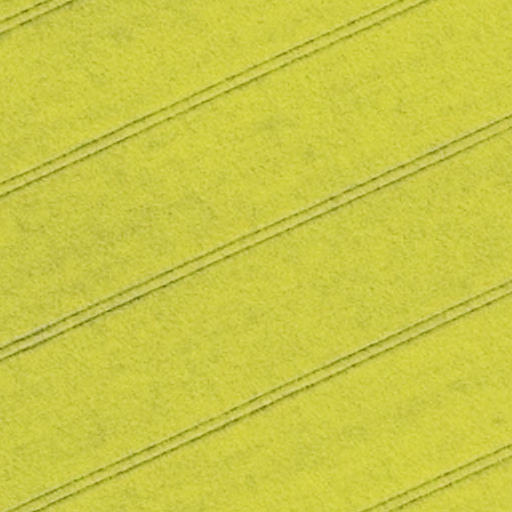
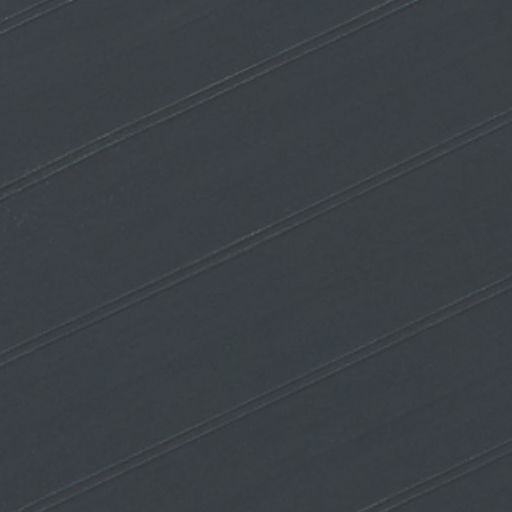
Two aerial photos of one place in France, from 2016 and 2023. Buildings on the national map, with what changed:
[]

